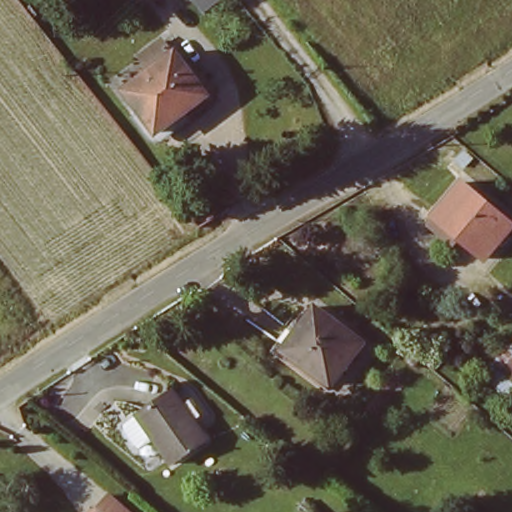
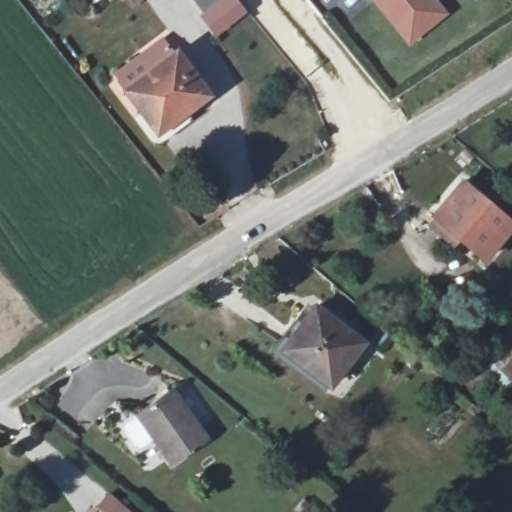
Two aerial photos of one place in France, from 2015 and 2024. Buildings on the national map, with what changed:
unchanged [(80,4),(77,0),(86,0),(80,4)]
unchanged [(141,2),(139,0),(144,0),(141,2)]
unchanged [(205,18),(192,0),(228,0),(205,18)]
new [(449,14),(410,45),(373,0),(438,0),(449,14)]
unchanged [(164,43),(175,57),(177,55),(210,98),(159,136),(142,114),(127,93),(153,73),(143,59),(164,43)]
unchanged [(432,225),(438,218),(434,215),(463,180),(512,220),(512,223),(483,257),(458,235),(452,243),(432,225)]
unchanged [(288,345),(303,327),(321,304),(368,343),(336,384),(332,380),(288,345)]
unchanged [(288,345),(332,380),(322,391),(273,350),(296,322),(303,327),(288,345)]
new [(510,401),(482,373),(512,343),(512,399),(510,401)]
unchanged [(125,426),(142,415),(175,391),(211,441),(175,465),(157,437),(140,448),(125,426)]
unchanged [(321,512),(297,512),(295,509),(303,498),(321,512)]
unchanged [(100,512),(111,500),(124,512),(100,512)]

